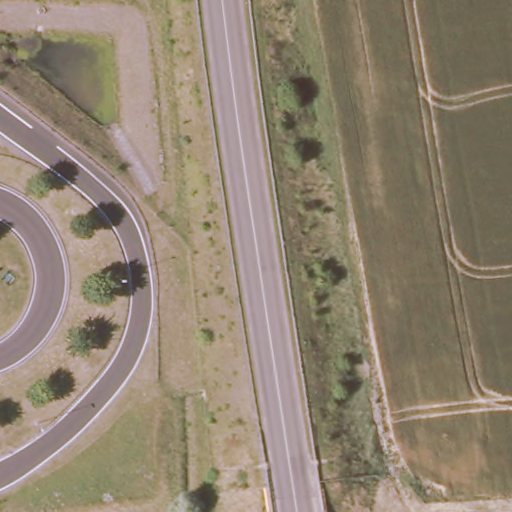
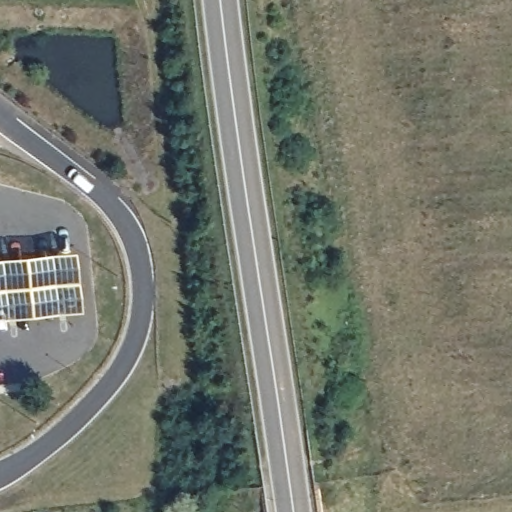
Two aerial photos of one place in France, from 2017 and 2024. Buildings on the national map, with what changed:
new [(0,317),(0,255),(82,247),(88,308),(0,317)]

